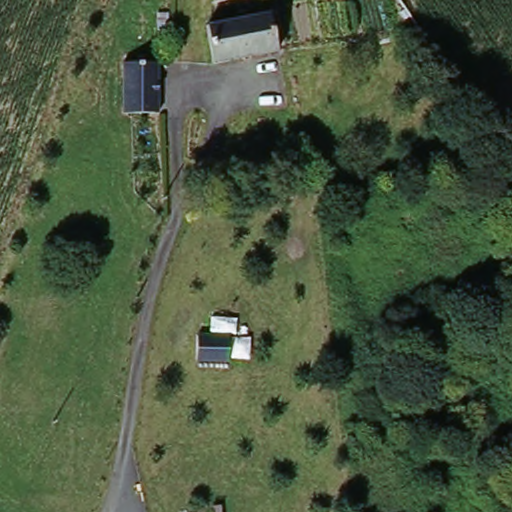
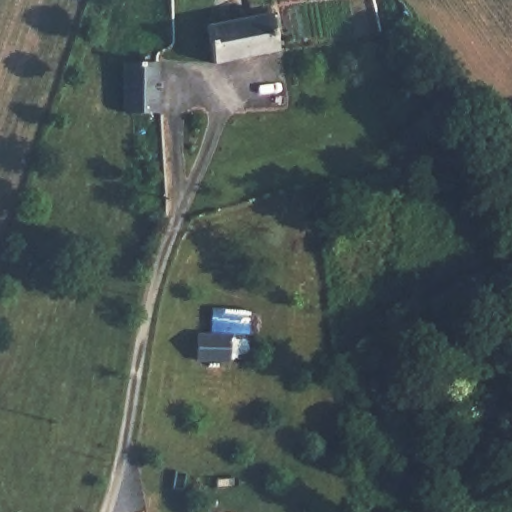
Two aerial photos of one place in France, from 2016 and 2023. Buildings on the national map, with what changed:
unchanged [(270,15),(275,48),(214,56),(207,24),(270,15)]
unchanged [(139,50),(139,49),(140,49),(141,49),(145,49),(146,49),(146,50),(147,50),(147,51),(146,56),(158,57),(157,107),(122,106),(123,56),(138,56),(139,50)]
unchanged [(204,345),(227,344),(228,364),(205,365),(204,345)]

